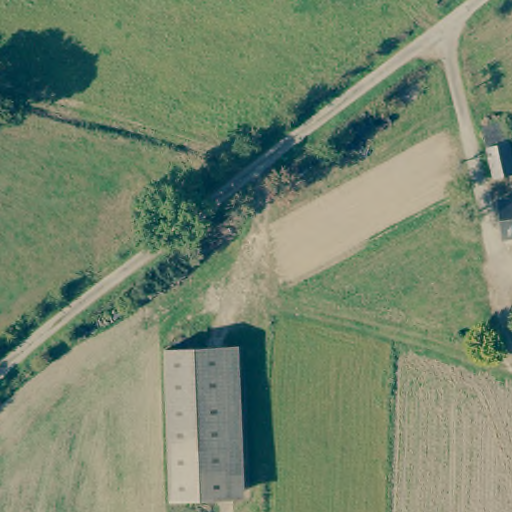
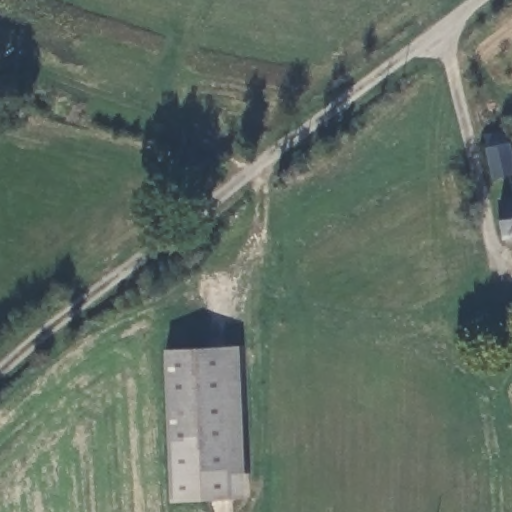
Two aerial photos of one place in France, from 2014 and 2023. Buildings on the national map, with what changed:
unchanged [(489,120),(498,119),(510,168),(487,171),(475,123),(489,120)]
unchanged [(499,196),(499,195),(512,193),(512,229),(502,230),(499,196)]
unchanged [(237,497),(180,502),(170,351),(230,347),(237,497)]

